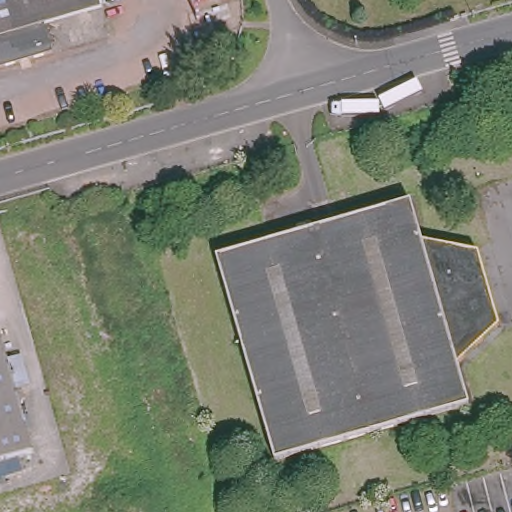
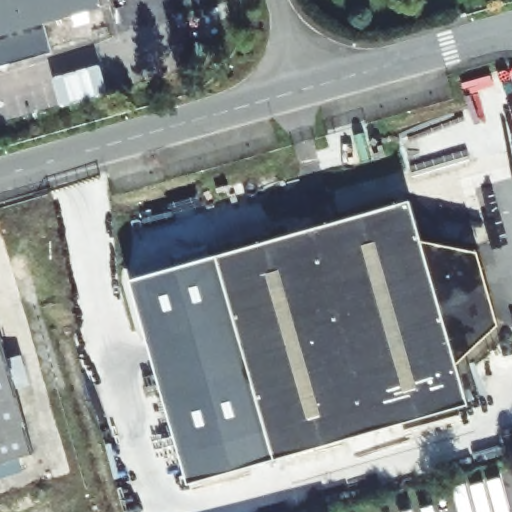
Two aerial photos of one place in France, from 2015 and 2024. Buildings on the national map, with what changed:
unchanged [(41,16),(49,49),(0,63),(0,0),(97,0),(98,0),(41,16)]
unchanged [(498,323),(456,361),(468,407),(274,462),(217,254),(411,199),(420,239),(479,251),(498,323)]
new [(188,487),(130,280),(217,254),(274,462),(188,487)]
unchanged [(33,451),(0,460),(0,331),(33,451)]

